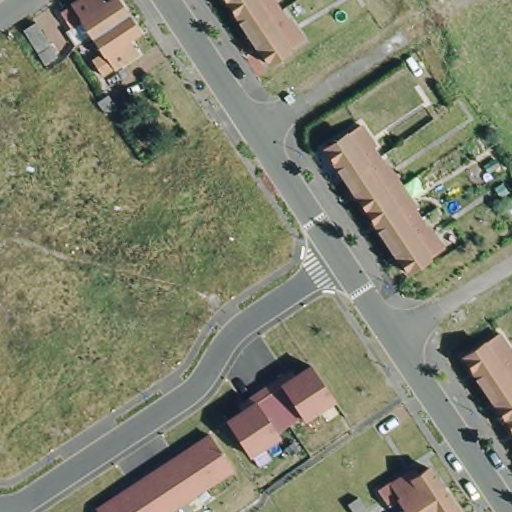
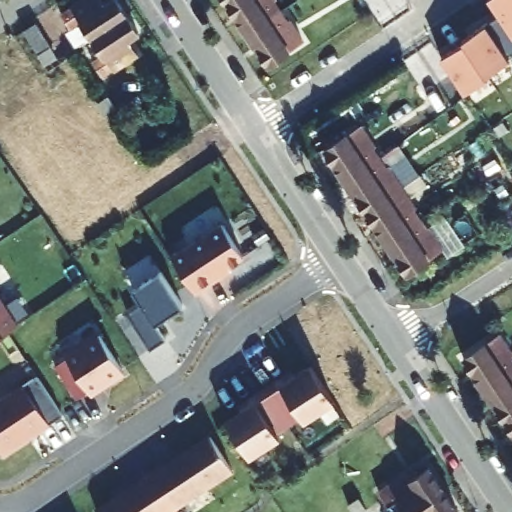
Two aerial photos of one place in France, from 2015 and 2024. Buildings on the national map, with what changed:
unchanged [(87,18),(75,26),(65,10),(76,2),(79,0),(108,0),(124,0),(130,10),(96,32),(87,18)]
unchanged [(218,7),(213,0),(230,0),(243,0),(263,0),(267,6),(265,7),(270,15),(277,25),(280,24),(294,45),(280,55),(258,69),(237,37),(218,7)]
new [(482,0),(512,0),(512,40),(510,41),(482,0)]
unchanged [(95,56),(107,48),(96,32),(130,10),(142,26),(131,35),(140,48),(117,64),(105,71),(95,56)]
unchanged [(46,61),(37,50),(23,28),(33,21),(48,42),(56,55),(46,61)]
new [(435,61),(482,31),(505,67),(458,97),(435,61)]
unchanged [(95,100),(105,94),(113,106),(103,113),(101,110),(95,101),(95,100)]
unchanged [(340,171),(318,140),(340,126),(355,116),(368,139),(367,140),(373,149),(380,160),(382,158),(397,180),(410,201),(408,202),(413,210),(419,220),(422,218),(437,240),(422,250),(402,263),(381,232),(361,203),(340,171)]
new [(222,222),(244,255),(228,265),(230,269),(196,291),(172,255),(222,222)]
new [(150,347),(128,313),(142,303),(134,288),(160,271),(182,303),(155,322),(163,337),(150,347)]
new [(0,333),(0,293),(18,322),(0,333)]
new [(125,373),(92,395),(87,388),(77,396),(57,363),(67,355),(64,350),(97,329),(125,373)]
unchanged [(485,393),(462,358),(484,345),(507,378),(512,386),(512,433),(504,421),(485,393)]
unchanged [(248,453),(222,417),(305,363),(328,398),(248,453)]
new [(63,412),(5,454),(0,447),(0,398),(38,374),(63,412)]
unchanged [(166,512),(100,512),(97,507),(204,435),(230,469),(166,512)]
unchanged [(412,510),(403,496),(387,506),(377,492),(412,469),(416,475),(432,463),(447,486),(412,510)]
unchanged [(462,508),(458,512),(413,512),(412,510),(447,486),(462,508)]

